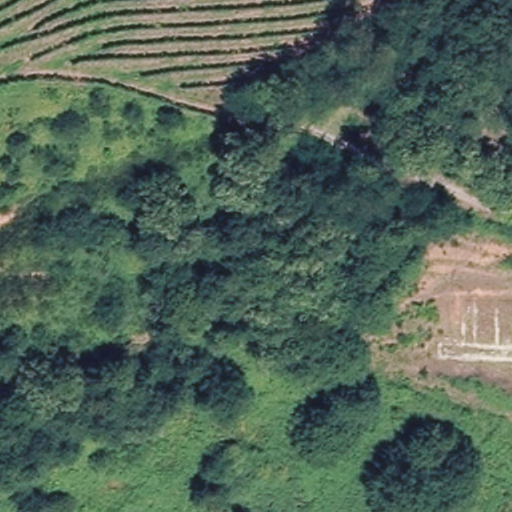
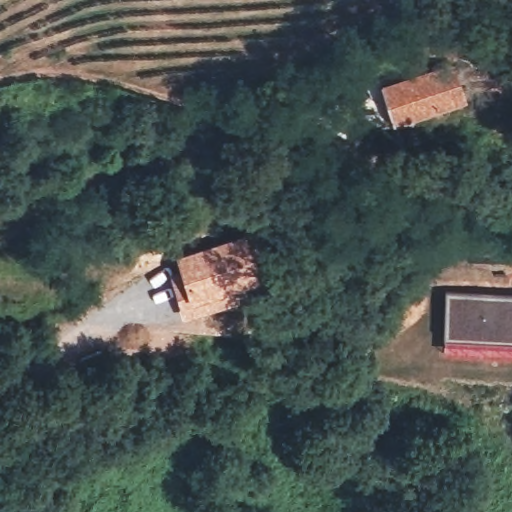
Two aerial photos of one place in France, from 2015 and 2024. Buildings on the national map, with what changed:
new [(452,63),(467,101),(393,125),(380,87),(452,63)]
new [(179,275),(174,258),(248,234),(263,283),(247,288),(248,293),(246,294),(247,300),(183,318),(171,277),(179,275)]
new [(474,351),(471,355),(443,354),(445,293),(512,295),(512,356),(478,351),(474,351)]

